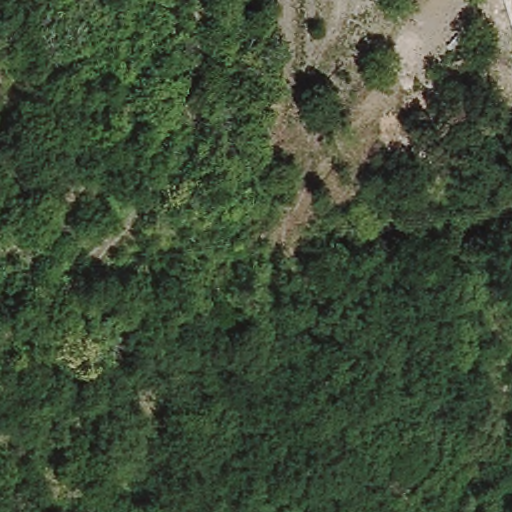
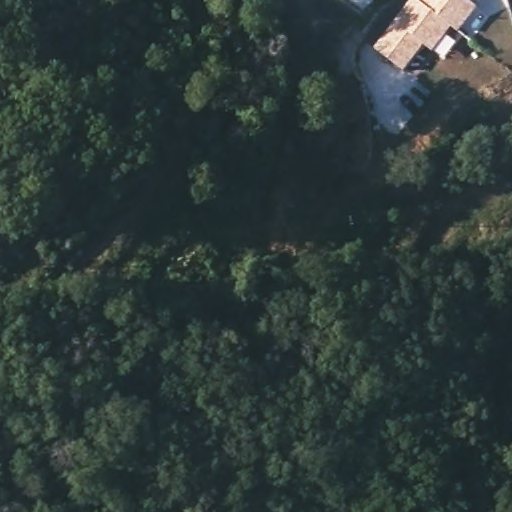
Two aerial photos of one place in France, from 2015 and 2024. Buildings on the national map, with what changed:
new [(425,0),(452,27),(431,50),(423,42),(400,65),(374,40),(413,0),(425,0)]
new [(480,11),(458,33),(452,27),(425,0),(475,0),(472,3),(480,11)]

